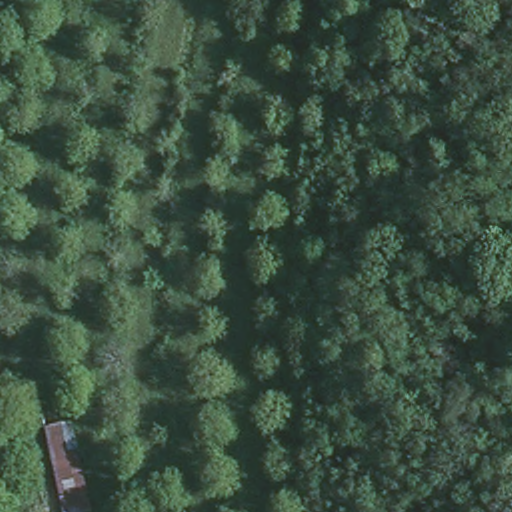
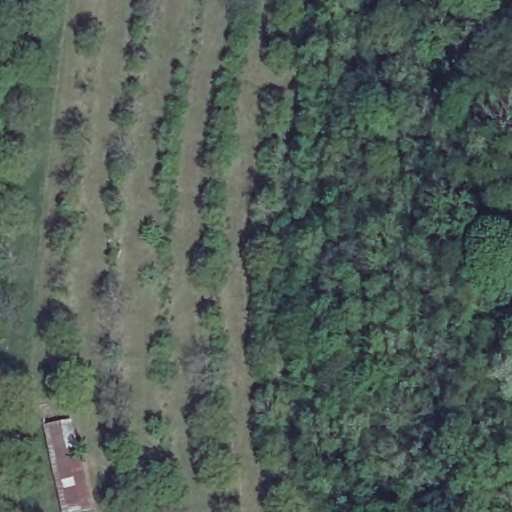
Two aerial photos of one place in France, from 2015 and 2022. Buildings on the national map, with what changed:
unchanged [(90,511),(86,512),(61,512),(44,428),(71,422),(90,511)]

